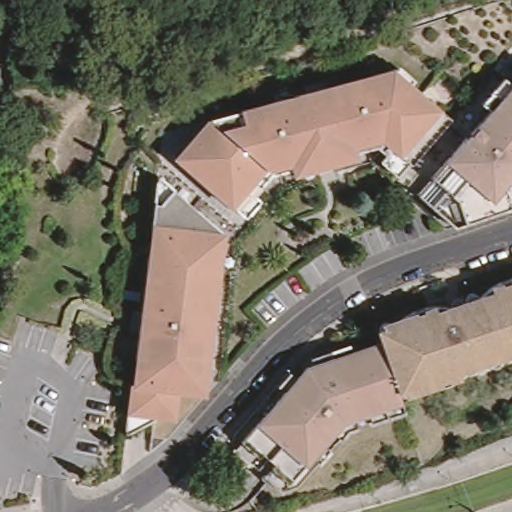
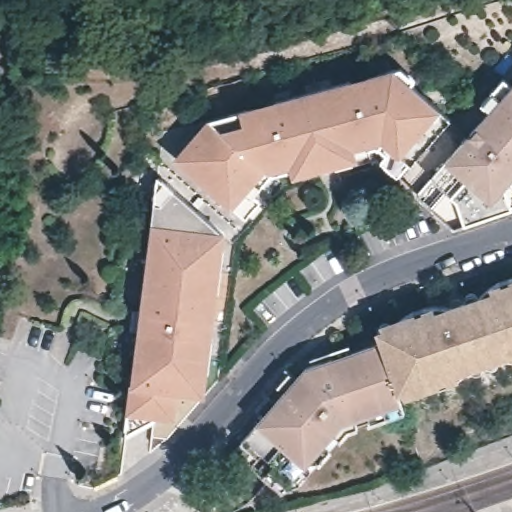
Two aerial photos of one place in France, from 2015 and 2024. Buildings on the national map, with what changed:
unchanged [(396,69),(401,67),(415,80),(412,83),(442,110),(400,157),(382,141),(356,149),(359,159),(293,176),(290,166),(266,170),(232,210),(173,157),(209,117),(240,109),(394,67),(396,69)]
unchanged [(502,186),(508,207),(459,223),(452,199),(427,176),(484,110),(476,104),(499,77),(507,84),(512,78),(512,174),(502,186)]
unchanged [(452,199),(459,223),(451,227),(449,227),(412,194),(427,176),(452,199)]
unchanged [(179,387),(176,415),(126,409),(130,381),(131,381),(138,325),(130,325),(133,305),(141,306),(152,217),(227,226),(206,391),(179,387)]
unchanged [(461,373),(462,377),(451,381),(450,379),(442,381),(443,383),(408,395),(406,391),(400,392),(387,352),(382,339),(379,329),(385,327),(383,322),(417,310),(418,312),(426,310),(425,307),(437,304),(438,308),(494,290),(492,285),(504,281),(504,283),(512,281),(512,355),(461,373)]
unchanged [(264,477),(271,468),(275,463),(262,452),(259,456),(251,465),(233,450),(241,441),(257,423),(255,422),(263,413),(257,407),(268,395),(274,400),(284,389),(278,383),(289,371),(295,376),(305,365),(382,339),(387,352),(400,392),(403,402),(402,402),(405,412),(369,425),(366,415),(355,419),(358,428),(349,431),(341,441),(333,435),(306,466),(304,465),(289,483),(282,491),(264,477)]

